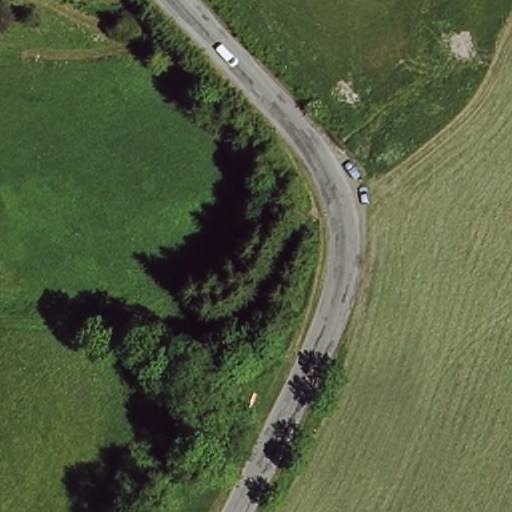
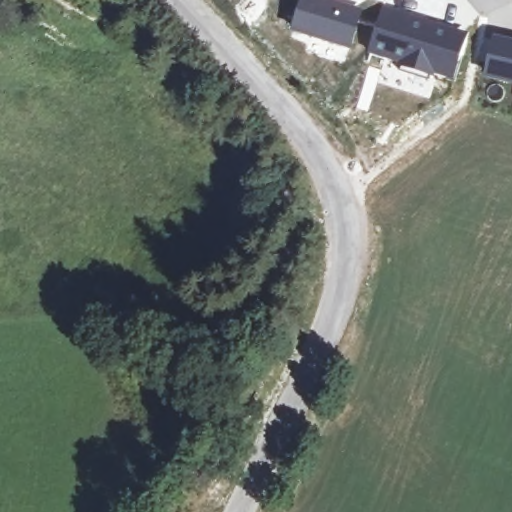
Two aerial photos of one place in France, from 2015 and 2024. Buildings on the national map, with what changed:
new [(298,0),(340,0),(363,8),(351,50),(288,30),(298,0)]
new [(383,2),(435,17),(468,30),(453,81),(400,68),(366,53),(383,2)]
new [(492,35),(512,40),(512,84),(483,77),(492,35)]

